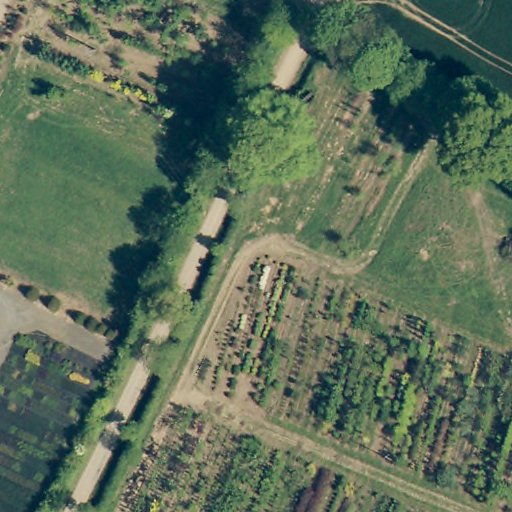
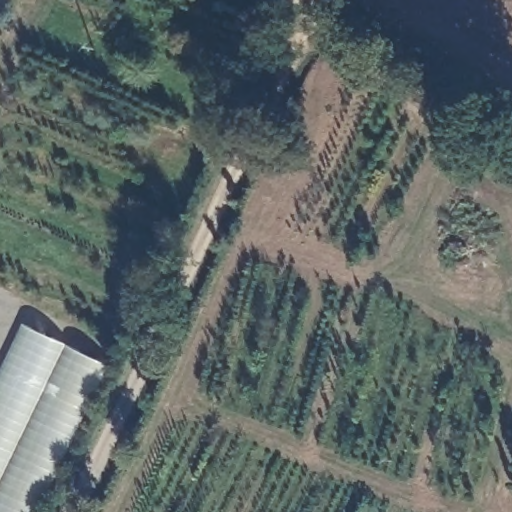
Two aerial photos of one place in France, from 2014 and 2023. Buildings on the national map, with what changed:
new [(42,512),(0,512),(0,377),(25,326),(112,368),(42,512)]

